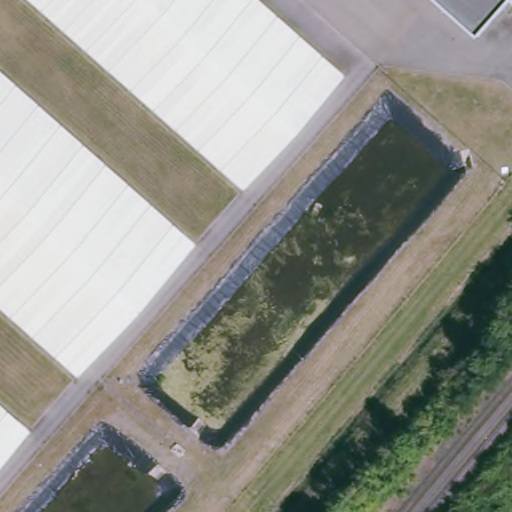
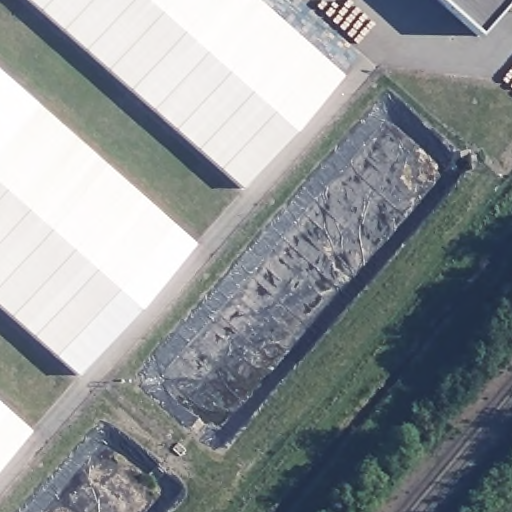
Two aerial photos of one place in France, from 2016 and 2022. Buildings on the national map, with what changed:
unchanged [(231,202),(6,0),(269,0),(348,71),(231,202)]
unchanged [(436,0),(512,0),(512,1),(478,38),(436,0)]
unchanged [(75,379),(0,312),(0,76),(191,248),(75,379)]
unchanged [(0,467),(0,408),(30,434),(0,467)]

